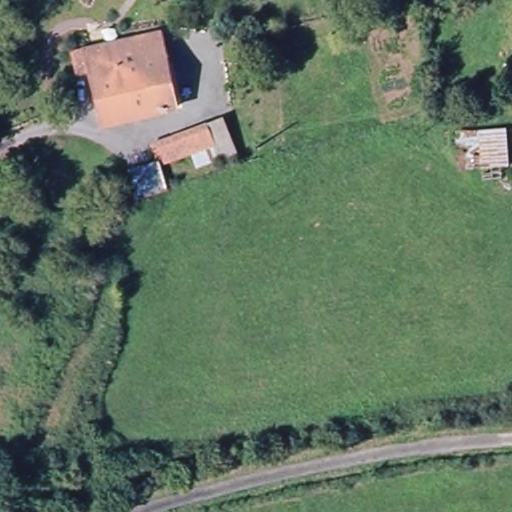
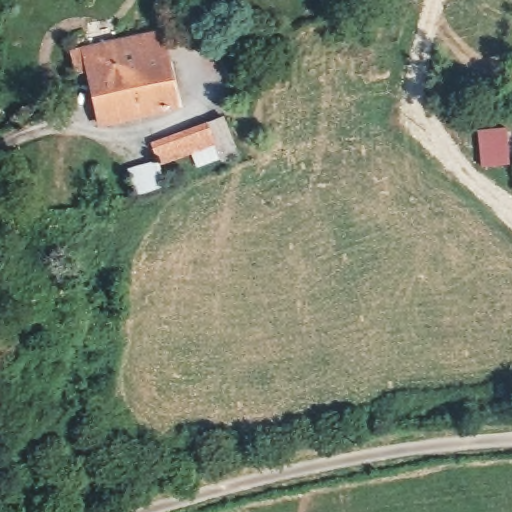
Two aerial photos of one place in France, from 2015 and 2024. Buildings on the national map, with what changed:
unchanged [(164,54),(159,55),(172,111),(98,128),(96,116),(85,73),(71,77),(66,56),(129,41),(159,34),(164,54)]
unchanged [(219,154),(215,141),(163,159),(157,141),(190,126),(225,114),(236,148),(219,154)]
unchanged [(473,172),(468,131),(493,129),(498,169),(473,172)]
unchanged [(163,159),(169,183),(143,189),(138,166),(163,159)]

